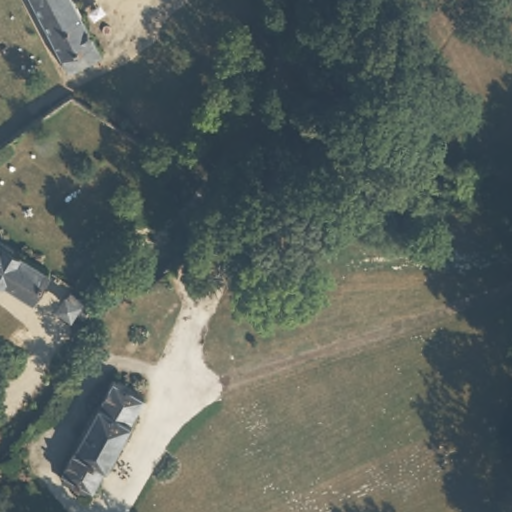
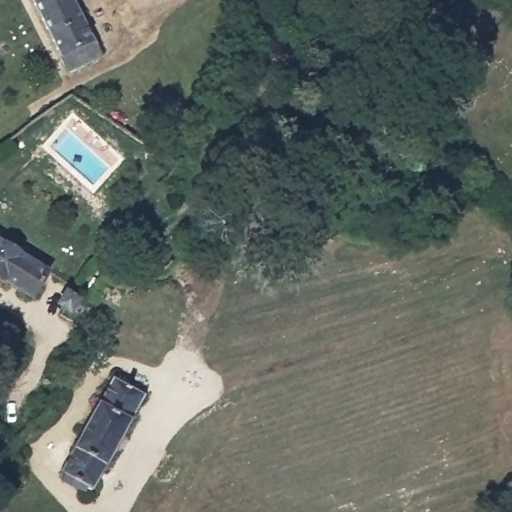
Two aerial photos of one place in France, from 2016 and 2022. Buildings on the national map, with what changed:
unchanged [(105,55),(72,73),(38,0),(79,0),(105,55)]
unchanged [(32,297),(0,277),(0,233),(53,267),(32,297)]
unchanged [(56,294),(64,282),(88,298),(80,310),(56,294)]
unchanged [(63,469),(116,376),(146,393),(95,489),(63,469)]

